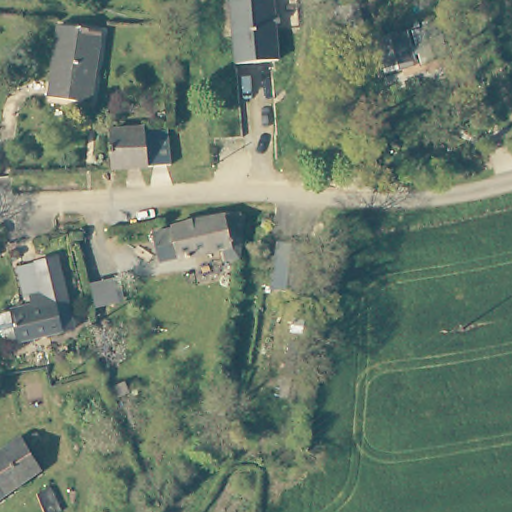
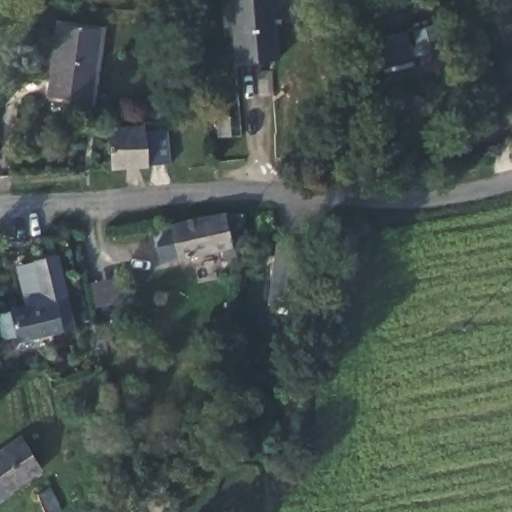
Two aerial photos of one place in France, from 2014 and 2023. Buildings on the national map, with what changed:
unchanged [(278,60),(237,63),(233,0),(274,0),(278,60)]
unchanged [(364,30),(348,36),(341,10),(358,5),(364,30)]
unchanged [(97,33),(89,103),(45,97),(55,28),(97,33)]
unchanged [(387,77),(384,67),(376,39),(403,30),(411,58),(414,68),(387,77)]
unchanged [(417,47),(440,40),(446,57),(423,64),(417,47)]
unchanged [(146,166),(112,168),(109,129),(144,127),(146,166)]
unchanged [(234,214),(230,249),(219,254),(215,244),(172,257),(165,227),(217,211),(234,214)]
unchanged [(287,252),(307,254),(303,288),(284,285),(272,284),(275,251),(287,252)]
unchanged [(51,261),(60,259),(60,260),(78,330),(69,332),(25,343),(24,338),(13,341),(8,338),(4,321),(6,317),(18,314),(17,312),(38,306),(36,301),(30,302),(22,268),(51,261)]
unchanged [(40,467),(0,495),(0,448),(17,435),(40,467)]
unchanged [(57,512),(44,512),(35,492),(49,486),(60,510),(57,512)]

